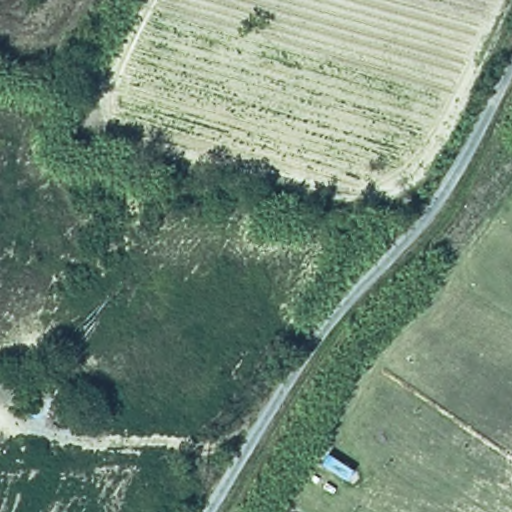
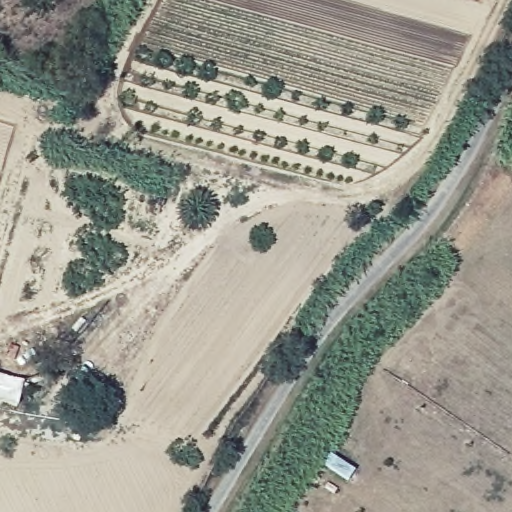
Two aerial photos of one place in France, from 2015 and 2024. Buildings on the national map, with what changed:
unchanged [(0,403),(0,375),(22,381),(15,407),(0,403)]

